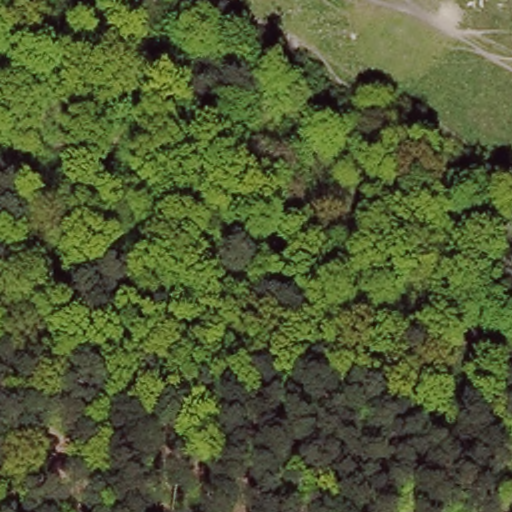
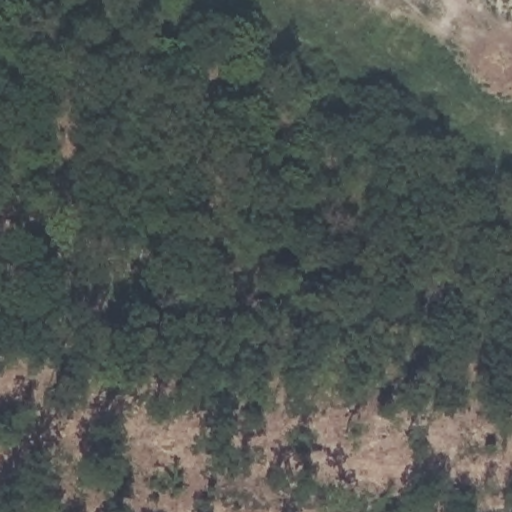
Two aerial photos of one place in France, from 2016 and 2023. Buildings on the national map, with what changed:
[]

